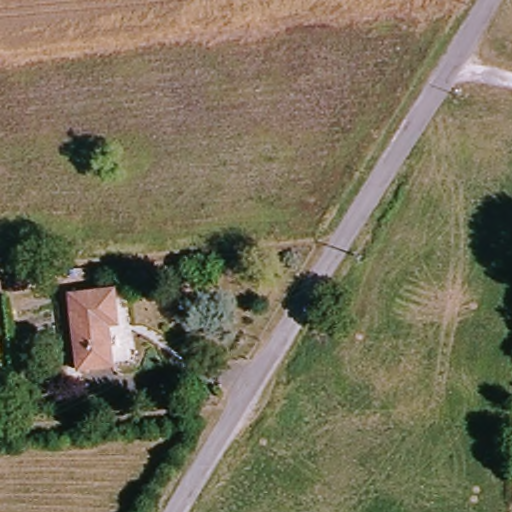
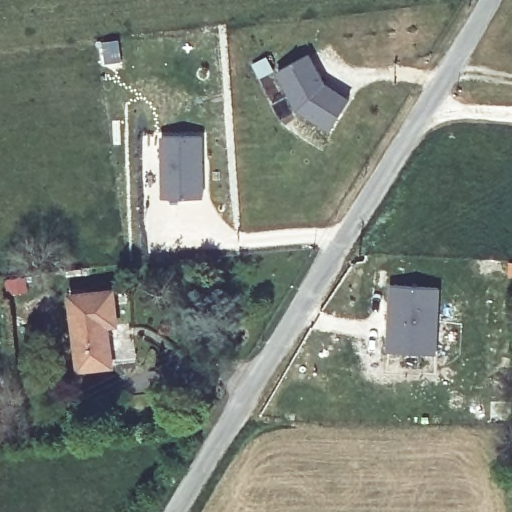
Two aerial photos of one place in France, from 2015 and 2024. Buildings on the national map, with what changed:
new [(340,120),(334,130),(301,109),(280,71),(311,55),(327,85),(341,93),(352,100),(340,120)]
new [(159,133),(204,132),(205,197),(159,199),(159,133)]
new [(389,285),(440,288),(437,354),(387,351),(389,285)]
unchanged [(80,367),(79,355),(76,297),(118,294),(120,323),(111,324),(113,353),(114,365),(80,367)]

